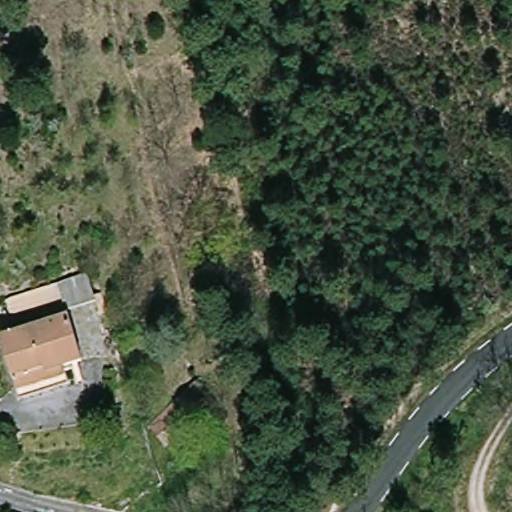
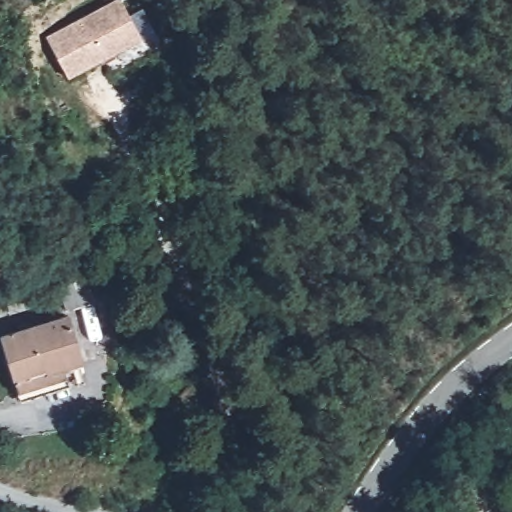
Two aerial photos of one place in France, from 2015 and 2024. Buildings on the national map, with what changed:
new [(115,0),(121,0),(142,40),(69,78),(46,36),(115,0)]
unchanged [(0,334),(0,331),(76,310),(90,359),(70,365),(76,388),(21,395),(0,334)]

